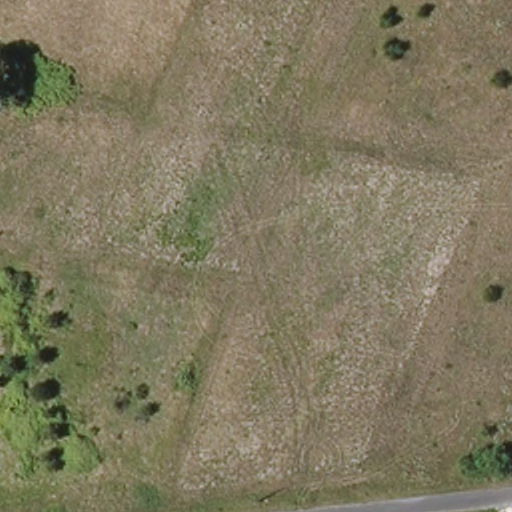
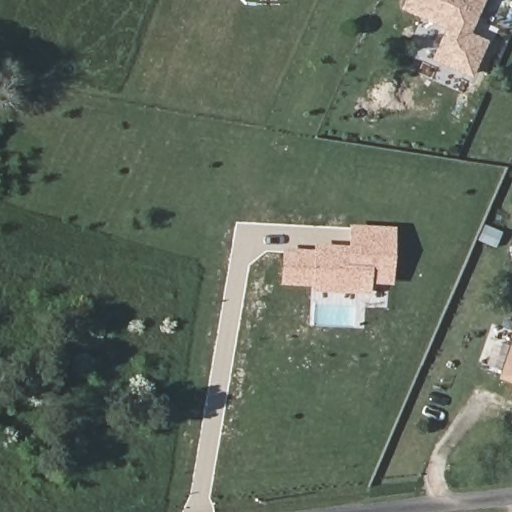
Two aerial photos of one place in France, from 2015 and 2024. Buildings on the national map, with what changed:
new [(488,40),(471,77),(430,59),(445,29),(400,9),(403,0),(484,0),(471,32),(488,40)]
new [(297,245),(297,249),(314,249),(314,246),(347,248),(348,224),(396,226),(393,287),(371,286),(369,293),(311,291),(311,286),(280,285),(282,245),(297,245)]
new [(512,336),(512,384),(497,378),(512,336)]
new [(510,394),(512,386),(512,395),(510,394)]

